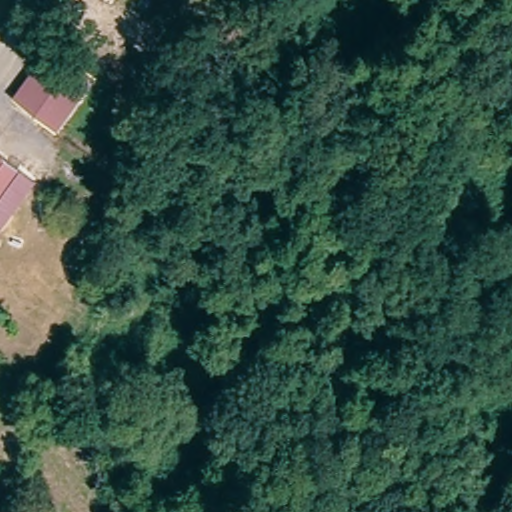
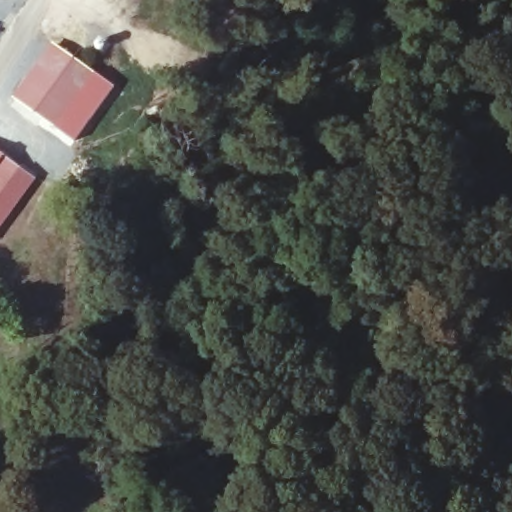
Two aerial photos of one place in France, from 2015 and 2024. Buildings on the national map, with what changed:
new [(75,138),(14,94),(53,41),(114,88),(75,138)]
demolished [(93,68),(57,121),(20,96),(55,43),(93,68)]
unchanged [(14,162),(0,183),(0,153),(14,162)]
unchanged [(14,162),(32,174),(0,220),(0,183),(14,162)]

